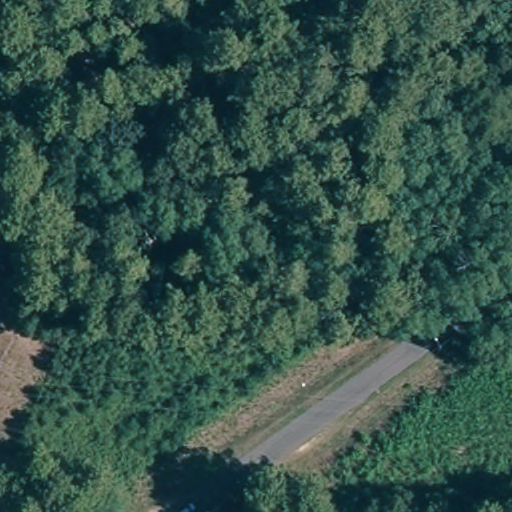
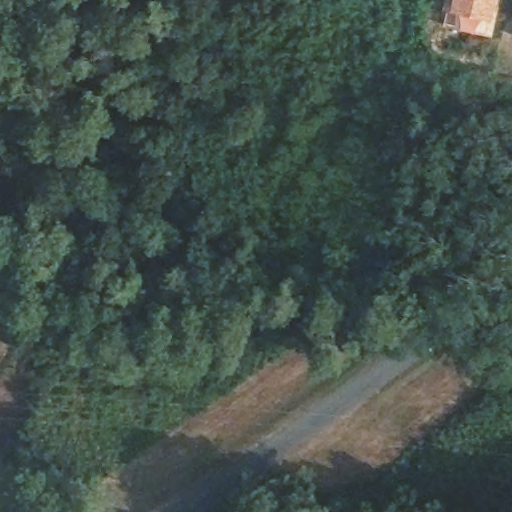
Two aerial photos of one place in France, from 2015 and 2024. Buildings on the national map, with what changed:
new [(450,0),(499,0),(491,36),(443,26),(447,10),(450,0)]

